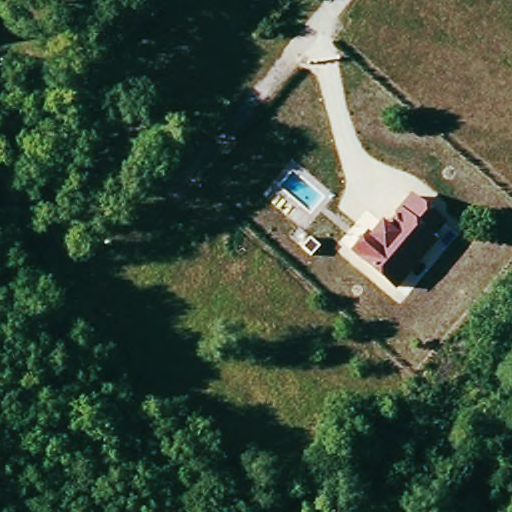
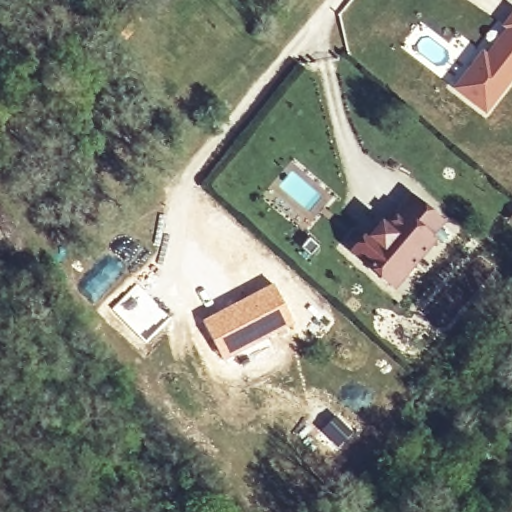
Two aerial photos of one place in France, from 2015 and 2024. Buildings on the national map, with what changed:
new [(136,3),(139,0),(168,0),(153,18),(146,27),(141,23),(125,41),(122,39),(120,42),(110,53),(102,46),(110,36),(114,30),(136,3)]
new [(512,81),(486,114),(451,87),(512,10),(512,81)]
unchanged [(447,222),(436,236),(439,238),(393,290),(351,251),(368,230),(373,233),(410,192),(447,222)]
new [(271,283),(290,321),(223,358),(201,319),(271,283)]

